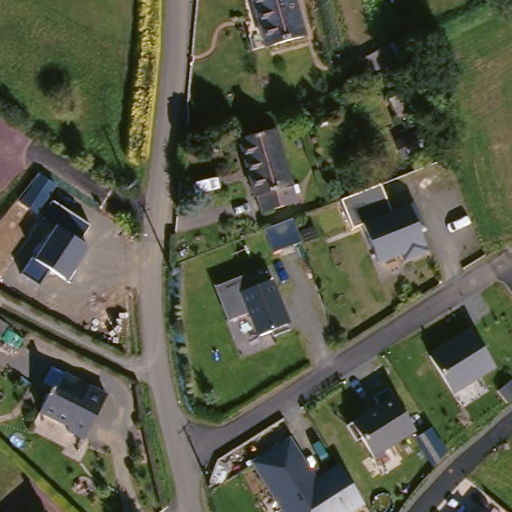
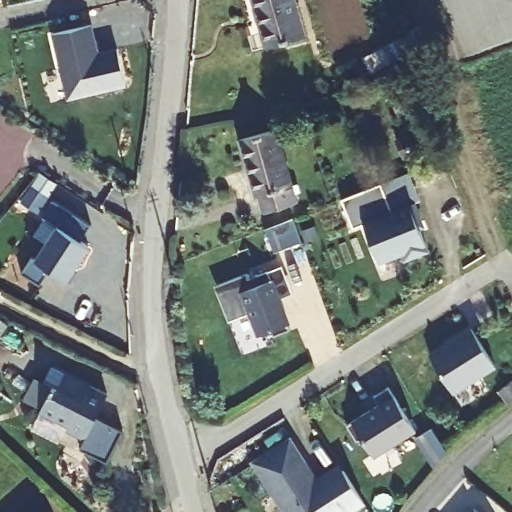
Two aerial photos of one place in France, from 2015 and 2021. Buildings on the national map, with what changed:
unchanged [(306,36),(271,46),(260,0),(296,0),(306,36)]
new [(99,53),(118,49),(125,86),(68,99),(53,34),(92,25),(99,53)]
unchanged [(426,26),(435,45),(393,60),(384,41),(426,26)]
unchanged [(264,215),(240,131),(280,120),(306,200),(264,215)]
unchanged [(80,241),(90,247),(68,280),(50,269),(40,283),(24,273),(35,256),(54,225),(23,201),(40,173),(59,185),(51,198),(91,224),(80,241)]
unchanged [(379,186),(390,211),(406,204),(429,254),(407,263),(402,255),(378,264),(363,224),(354,228),(342,202),(379,186)]
unchanged [(244,274),(248,282),(269,275),(290,321),(257,334),(247,311),(228,319),(215,286),(244,274)]
unchanged [(454,395),(431,357),(471,332),(497,371),(454,395)]
unchanged [(116,394),(88,437),(70,429),(73,424),(43,410),(58,385),(63,388),(72,373),(116,394)]
unchanged [(371,460),(349,426),(380,406),(374,399),(388,390),(416,431),(371,460)]
unchanged [(289,439),(316,480),(337,465),(362,505),(351,512),(283,512),(251,463),(289,439)]
unchanged [(479,512),(462,512),(469,503),(479,512)]
unchanged [(25,512),(28,509),(31,512),(25,512)]

